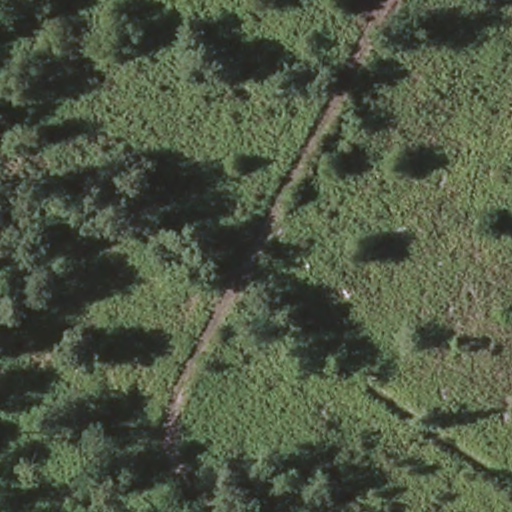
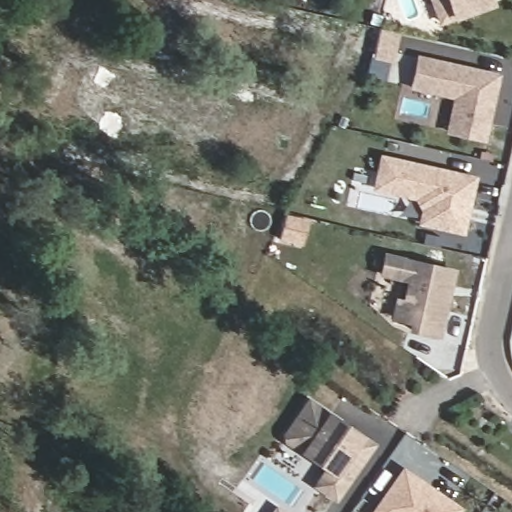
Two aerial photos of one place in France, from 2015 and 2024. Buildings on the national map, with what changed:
new [(456,19),(439,25),(430,0),(494,0),(496,5),(456,19)]
new [(378,25),(396,30),(389,59),(371,55),(378,25)]
new [(447,132),(454,98),(411,89),(418,55),(502,73),(487,141),(447,132)]
new [(466,234),(419,225),(421,210),(413,199),(373,191),(381,153),(478,175),(466,234)]
new [(442,339),(409,331),(410,324),(392,320),(396,296),(404,298),(407,283),(379,276),(384,252),(457,268),(442,339)]
new [(337,503),(313,487),(324,469),(300,453),(284,442),(284,433),(309,397),(328,410),(364,435),(376,442),(337,503)]
new [(373,512),(404,466),(464,507),(461,512),(373,512)]

